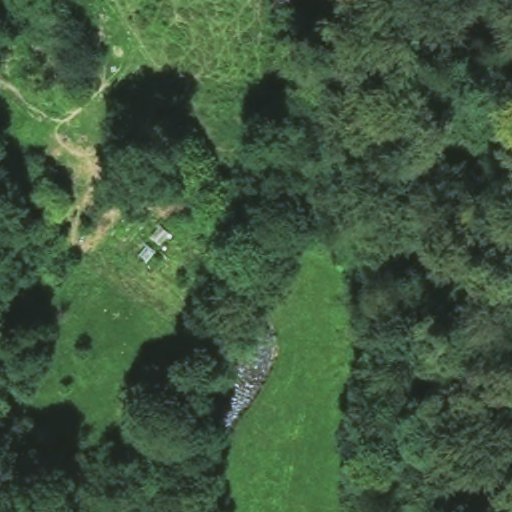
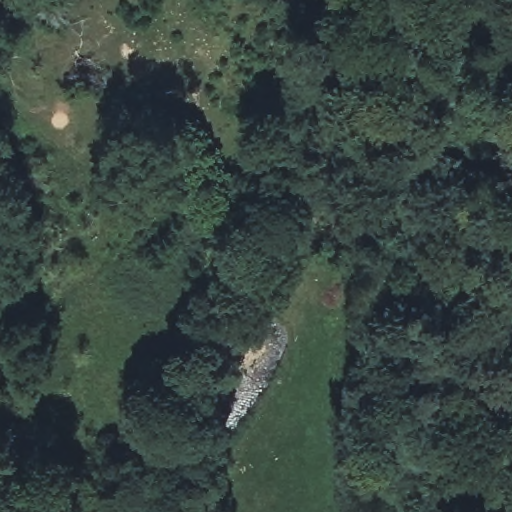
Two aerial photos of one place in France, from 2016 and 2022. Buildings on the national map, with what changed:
unchanged [(89,73),(94,80),(75,89),(71,79),(89,73)]
unchanged [(185,244),(166,254),(161,240),(176,229),(185,244)]

